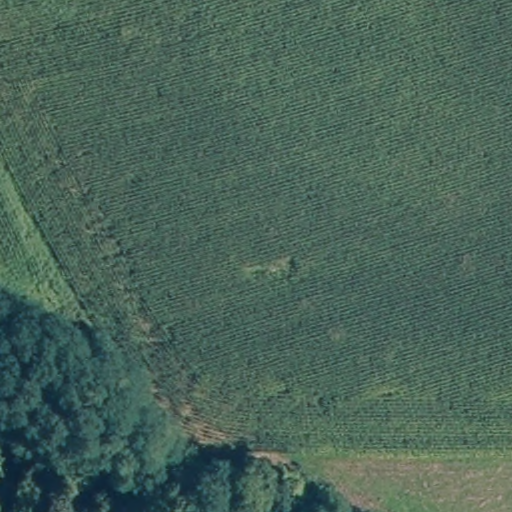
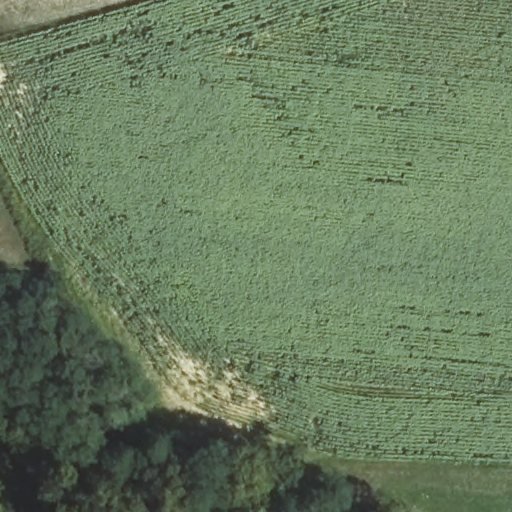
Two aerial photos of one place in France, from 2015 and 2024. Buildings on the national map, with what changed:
[]

